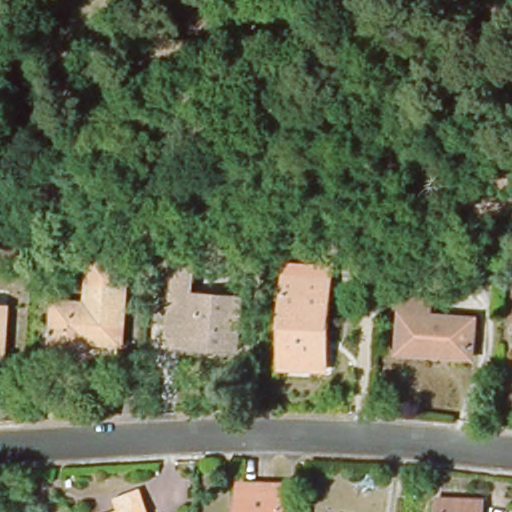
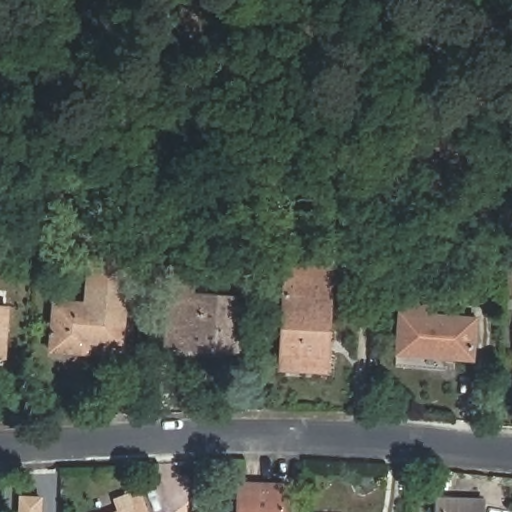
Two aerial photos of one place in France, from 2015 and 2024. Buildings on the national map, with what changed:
unchanged [(123,232),(146,232),(146,245),(122,245),(123,232)]
unchanged [(85,352),(56,350),(59,301),(92,304),(94,270),(95,257),(134,260),(133,273),(128,346),(86,343),(85,352)]
unchanged [(285,266),(295,266),(295,278),(331,279),(327,372),(281,369),(285,277),(285,266)]
unchanged [(194,269),(192,294),(243,297),(239,350),(239,351),(181,347),(184,312),(169,311),(170,296),(173,268),(194,269)]
unchanged [(398,353),(402,298),(431,300),(431,315),(476,319),(473,359),(398,353)]
unchanged [(8,308),(5,357),(0,356),(0,307),(8,308)]
unchanged [(285,491),(285,512),(239,512),(240,489),(285,491)]
unchanged [(135,491),(143,512),(116,512),(111,500),(135,491)]
new [(43,500),(42,512),(18,512),(19,499),(43,500)]
unchanged [(483,502),(483,512),(437,512),(437,500),(483,502)]

